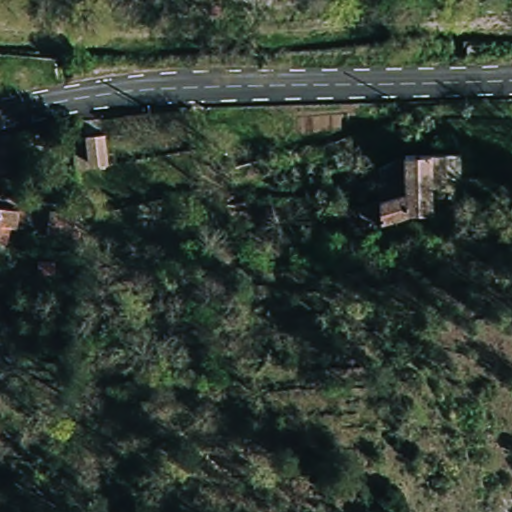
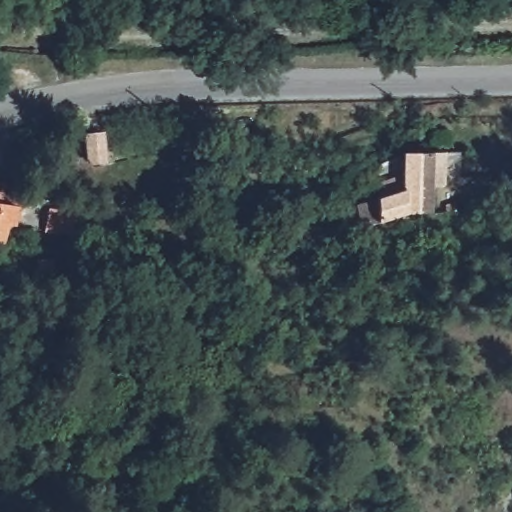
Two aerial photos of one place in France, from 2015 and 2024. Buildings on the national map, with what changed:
unchanged [(91,165),(85,135),(102,134),(108,164),(91,165)]
unchanged [(9,176),(0,176),(0,144),(6,144),(9,176)]
unchanged [(372,228),(361,206),(408,190),(409,153),(414,153),(439,154),(445,200),(443,216),(372,228)]
unchanged [(116,210),(112,186),(181,176),(187,199),(116,210)]
unchanged [(16,210),(15,237),(0,237),(0,208),(16,210)]
unchanged [(48,232),(50,210),(76,210),(72,235),(48,232)]

